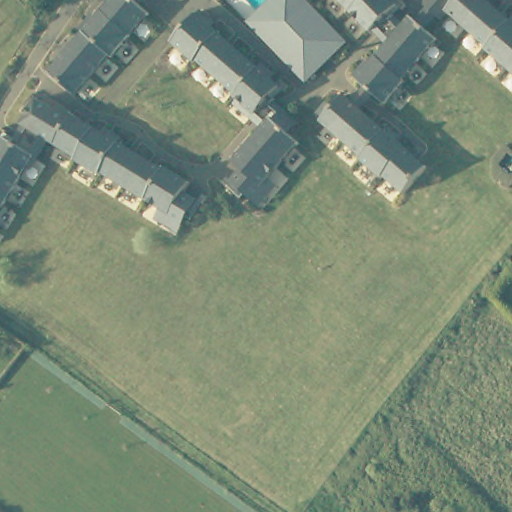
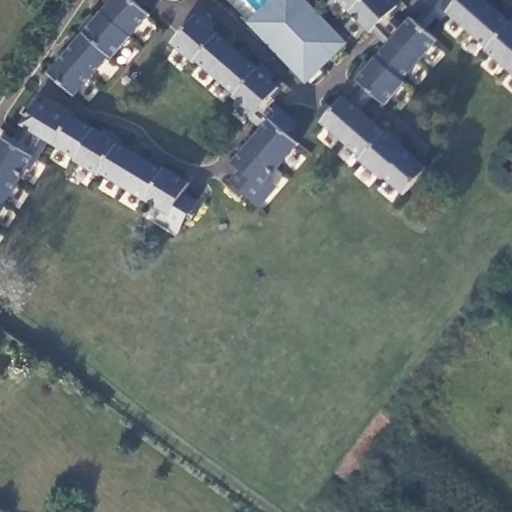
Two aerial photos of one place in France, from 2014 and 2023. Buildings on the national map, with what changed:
unchanged [(149,16),(76,97),(49,74),(110,0),(131,0),(149,16)]
unchanged [(270,0),(306,0),(348,44),(306,83),(247,23),(270,0)]
unchanged [(397,7),(391,13),(404,25),(410,17),(416,22),(426,10),(421,5),(426,0),(485,0),(512,24),(512,72),(447,15),(441,21),(437,18),(425,31),(437,43),(384,104),(373,96),(361,112),(427,169),(403,195),(319,121),(342,93),(353,102),(365,90),(355,80),(388,46),(373,30),(369,32),(338,0),(391,0),(397,7)]
unchanged [(196,16),(258,68),(281,88),(270,100),(297,124),(288,135),(300,144),(268,179),(277,187),(260,207),(245,195),(242,199),(226,185),(239,170),(232,165),(263,128),(234,103),(237,98),(171,44),(196,16)]
unchanged [(42,102),(45,97),(190,183),(184,193),(197,201),(180,233),(155,221),(160,210),(49,145),(35,170),(29,166),(0,214),(0,144),(4,138),(12,143),(21,125),(35,98),(42,102)]

